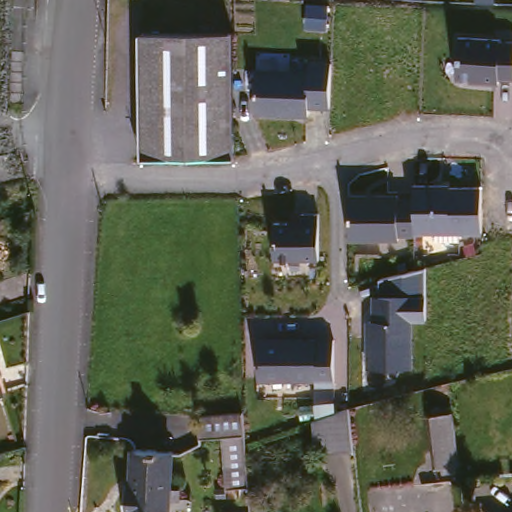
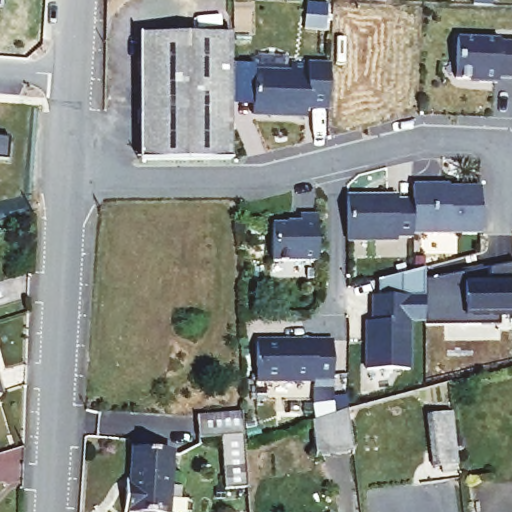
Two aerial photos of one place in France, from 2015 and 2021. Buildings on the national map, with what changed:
unchanged [(236,154),(182,155),(146,155),(145,28),(235,28),(236,154)]
unchanged [(498,83),(478,83),(478,77),(455,77),(456,38),(499,39),(499,43),(512,43),(512,78),(498,74),(498,83)]
unchanged [(306,108),(306,116),(252,115),(254,72),(306,73),(307,61),(330,62),(328,108),(306,108)]
new [(8,138),(6,158),(0,158),(0,138),(8,138)]
unchanged [(398,241),(348,241),(348,193),(398,194),(398,199),(413,199),(414,182),(448,182),(448,186),(480,186),(480,235),(413,234),(413,236),(398,236),(398,241)]
unchanged [(271,258),(269,225),(301,223),(301,215),(316,215),(317,258),(271,258)]
new [(435,276),(454,274),(454,272),(465,273),(465,282),(488,282),(488,268),(512,263),(512,315),(499,315),(499,323),(425,322),(425,280),(435,279),(435,276)]
unchanged [(365,367),(365,321),(370,321),(370,297),(378,297),(378,280),(425,269),(425,322),(412,322),(412,369),(365,367)]
unchanged [(313,420),(312,382),(257,383),(258,336),(333,338),(335,414),(318,419),(313,420)]
unchanged [(5,384),(0,386),(0,367),(5,384)]
unchanged [(229,482),(227,454),(225,430),(203,431),(201,409),(246,406),(249,456),(251,481),(229,482)]
unchanged [(318,419),(340,412),(350,408),(354,448),(322,452),(318,419)]
unchanged [(453,413),(459,462),(459,465),(435,467),(429,416),(453,413)]
unchanged [(175,508),(163,507),(163,512),(136,512),(137,504),(132,504),(134,475),(138,475),(140,447),(140,443),(180,446),(180,450),(175,508)]

